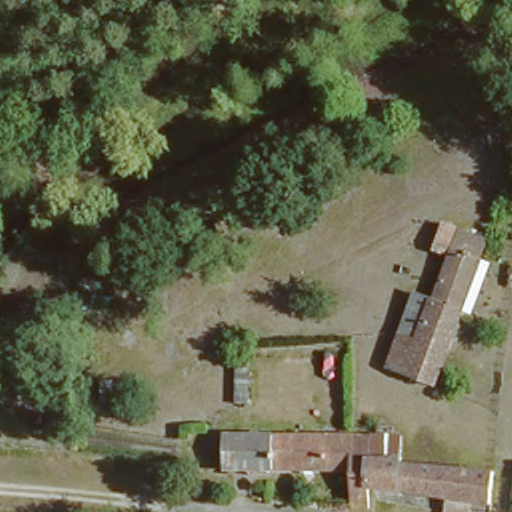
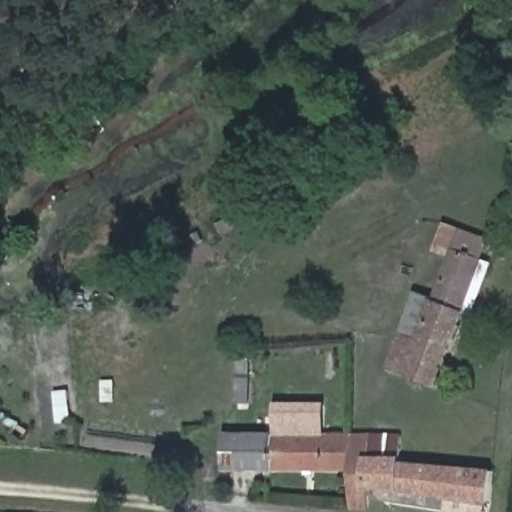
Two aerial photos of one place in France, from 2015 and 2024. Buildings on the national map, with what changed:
unchanged [(433,295),(448,252),(434,248),(443,219),(493,237),(488,258),(491,260),(472,312),(465,310),(434,384),(386,366),(413,287),(433,295)]
unchanged [(248,356),(248,402),(233,401),(235,354),(248,356)]
new [(274,428),(275,402),(324,402),(326,430),(274,428)]
unchanged [(478,472),(493,473),(490,504),(392,490),(370,488),(369,507),(350,505),(352,471),(229,465),(230,428),(354,430),(374,431),(398,430),(401,457),(478,466),(478,472)]

